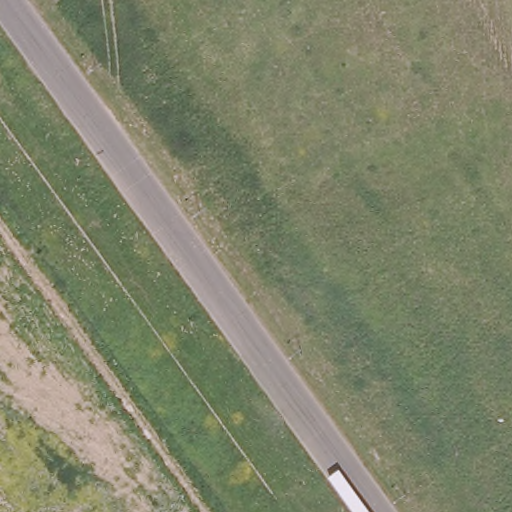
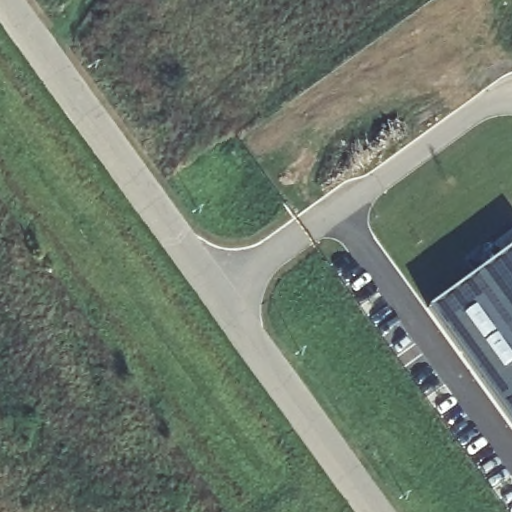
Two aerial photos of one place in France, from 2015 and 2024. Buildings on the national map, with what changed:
new [(512,249),(512,421),(430,309),(512,249)]

